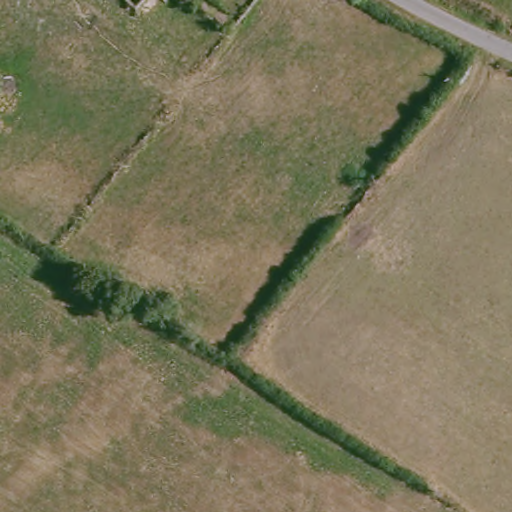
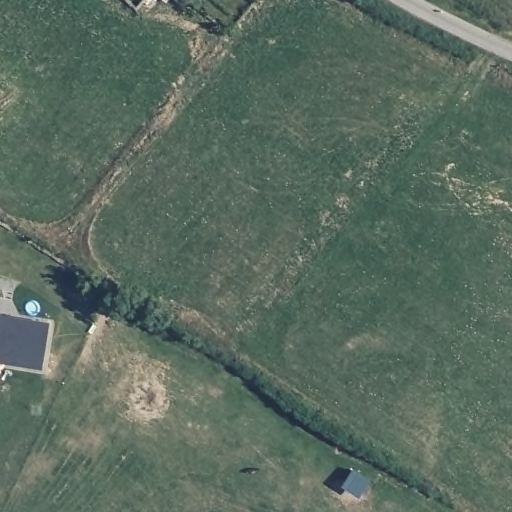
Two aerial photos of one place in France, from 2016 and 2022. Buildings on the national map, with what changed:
unchanged [(150,0),(165,0),(158,7),(150,0)]
new [(40,369),(0,362),(0,315),(48,322),(40,369)]
new [(351,463),(372,477),(364,489),(343,476),(351,463)]

